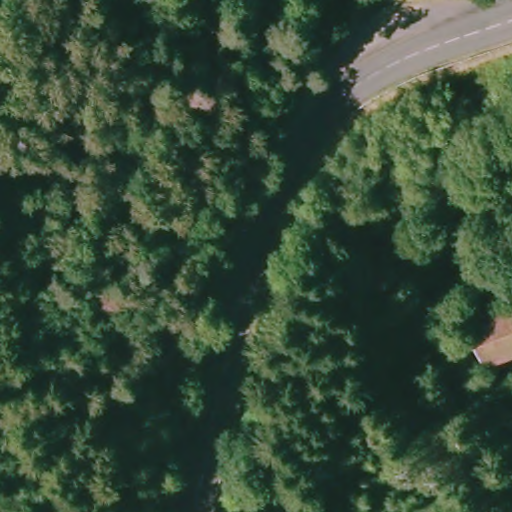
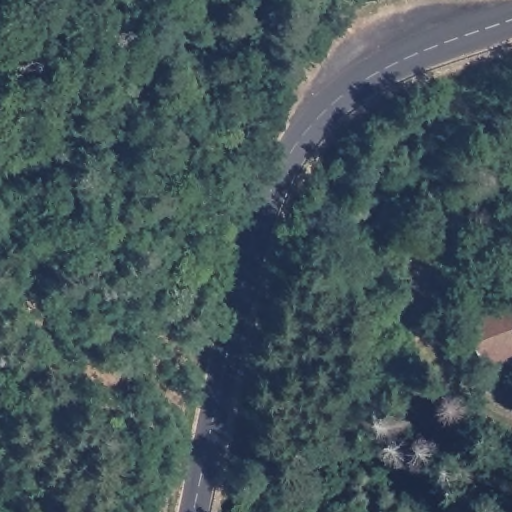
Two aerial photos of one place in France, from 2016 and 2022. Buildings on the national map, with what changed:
unchanged [(462,319),(512,299),(512,347),(481,358),(462,319)]

